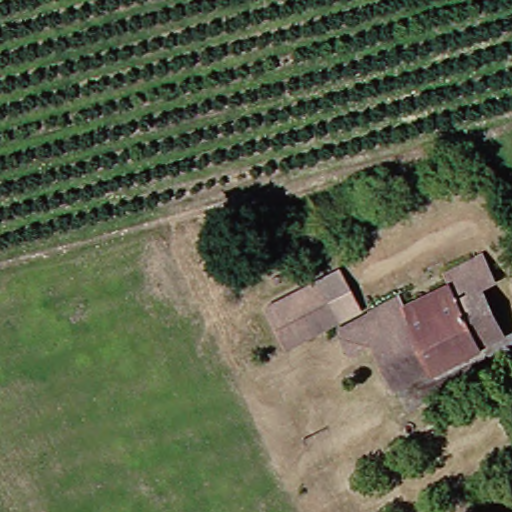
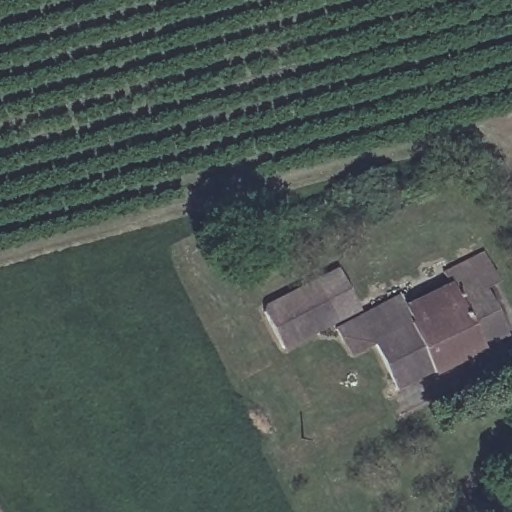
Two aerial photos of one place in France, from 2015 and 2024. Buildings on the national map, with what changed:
unchanged [(472,349),(366,399),(328,331),(389,301),(394,307),(440,285),(435,276),(460,264),(477,255),(491,283),(474,289),(498,337),(472,349)]
unchanged [(255,310),(312,284),(330,324),(277,349),(255,310)]

